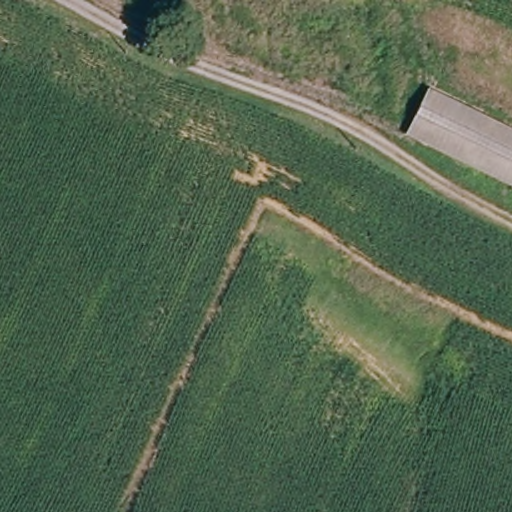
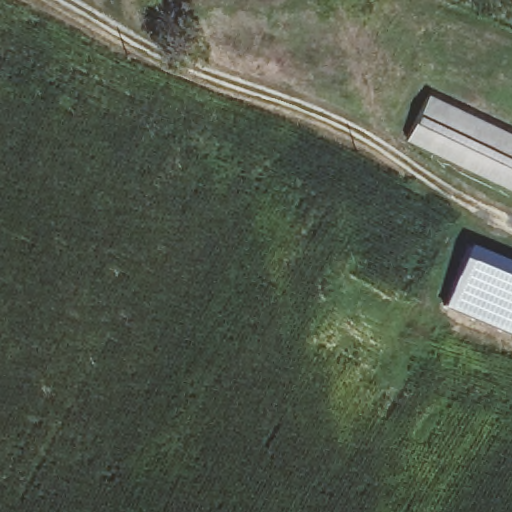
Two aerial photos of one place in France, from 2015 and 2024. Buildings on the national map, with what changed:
unchanged [(415,144),(437,100),(512,135),(512,190),(415,144)]
new [(468,245),(512,264),(512,336),(442,307),(468,245)]

